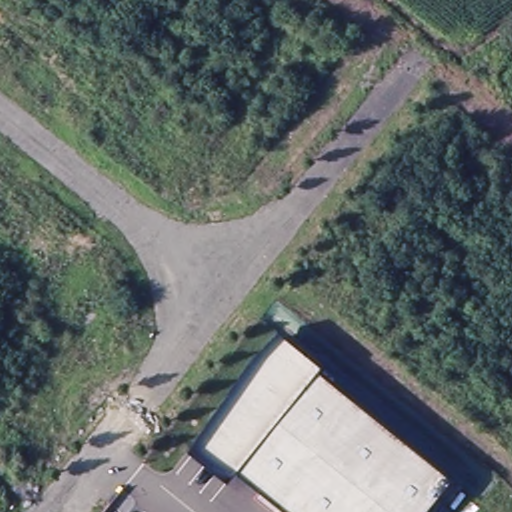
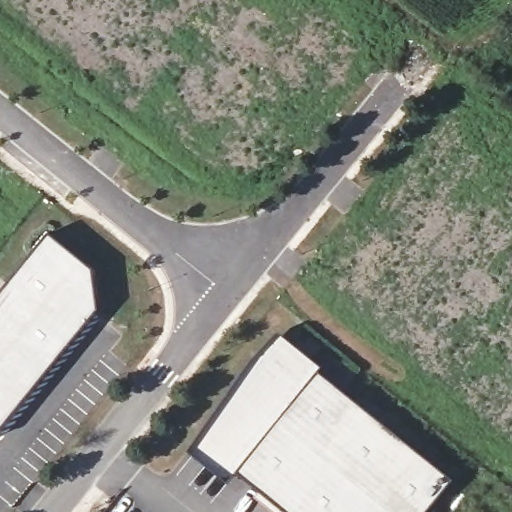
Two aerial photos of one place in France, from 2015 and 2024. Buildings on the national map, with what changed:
new [(50,234),(95,271),(101,312),(0,437),(0,296),(50,234)]
unchanged [(189,452),(279,332),(322,366),(318,372),(452,480),(426,512),(287,512),(284,510),(283,512),(274,512),(254,496),(259,488),(237,472),(228,484),(189,452)]

